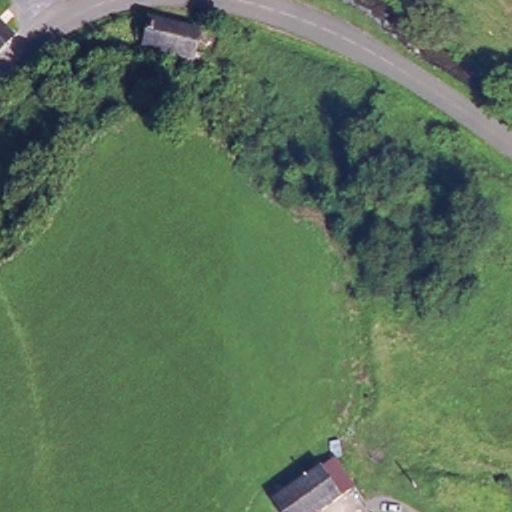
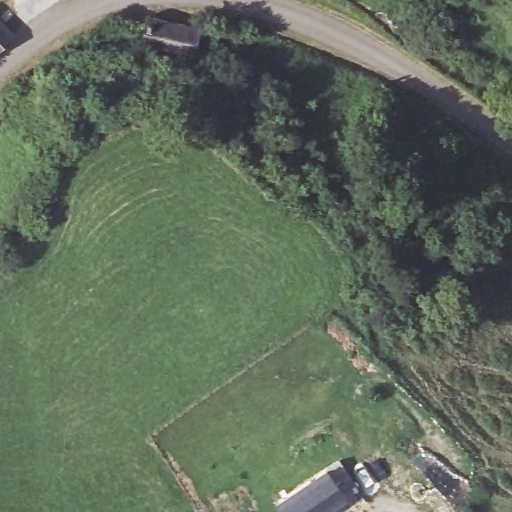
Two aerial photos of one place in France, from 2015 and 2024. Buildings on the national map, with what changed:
unchanged [(0,54),(0,19),(15,38),(0,54)]
unchanged [(200,34),(194,60),(144,48),(149,21),(200,34)]
unchanged [(356,492),(342,500),(321,512),(279,512),(273,503),(326,471),(337,463),(356,492)]

